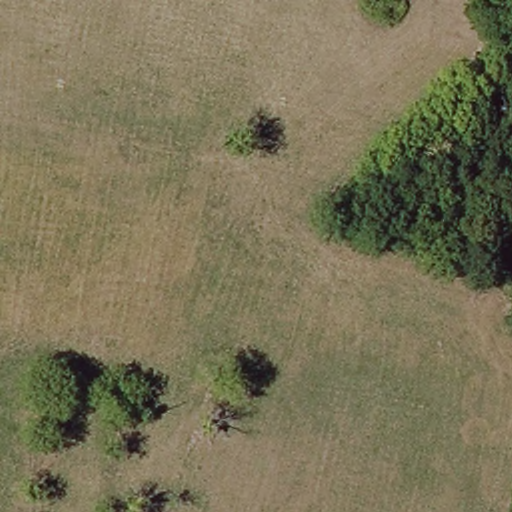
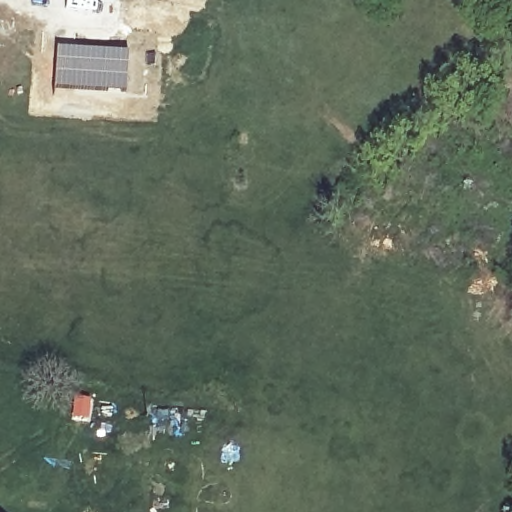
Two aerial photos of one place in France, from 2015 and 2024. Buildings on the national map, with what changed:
new [(57,45),(130,52),(127,92),(54,87),(57,45)]

